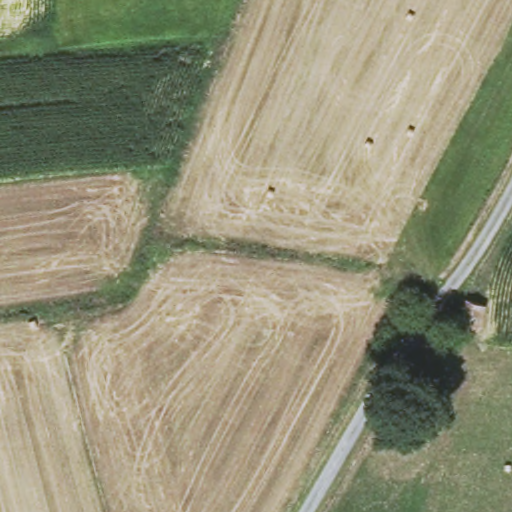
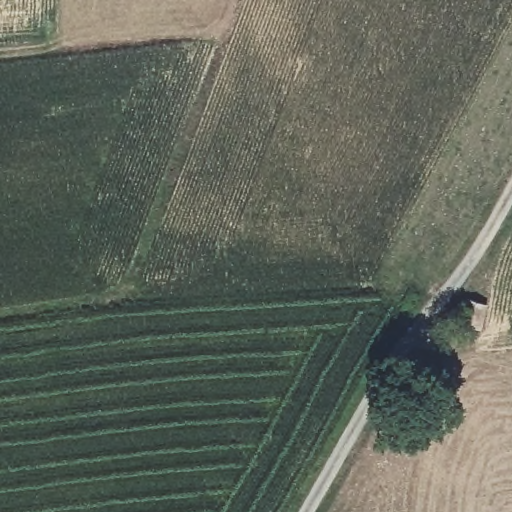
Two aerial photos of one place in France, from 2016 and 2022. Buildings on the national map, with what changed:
unchanged [(484,301),(480,327),(464,325),(468,295),(484,301)]

